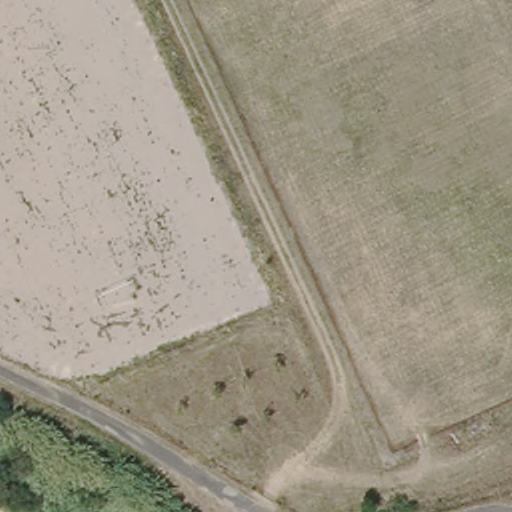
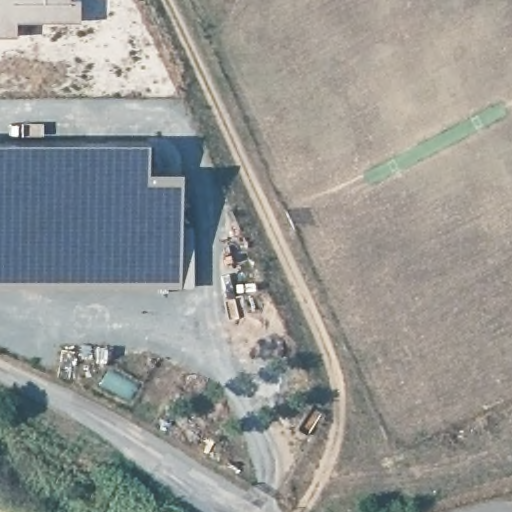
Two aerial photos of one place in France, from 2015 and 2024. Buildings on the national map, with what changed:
new [(80,22),(17,22),(17,37),(0,37),(0,0),(80,0),(80,22)]
new [(147,171),(180,170),(181,286),(0,286),(0,139),(146,140),(147,171)]

